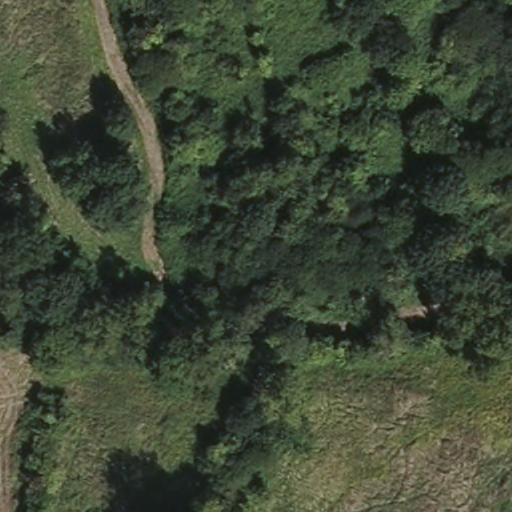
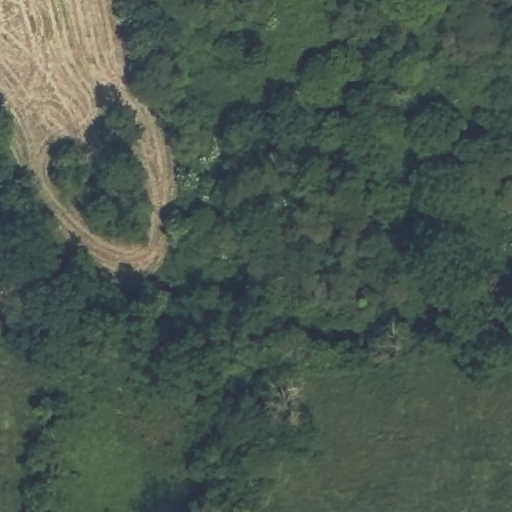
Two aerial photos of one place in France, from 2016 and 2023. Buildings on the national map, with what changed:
unchanged [(251,210),(255,231),(235,238),(229,217),(251,210)]

